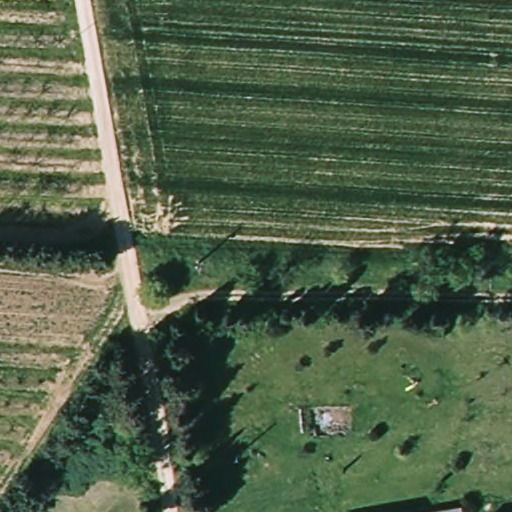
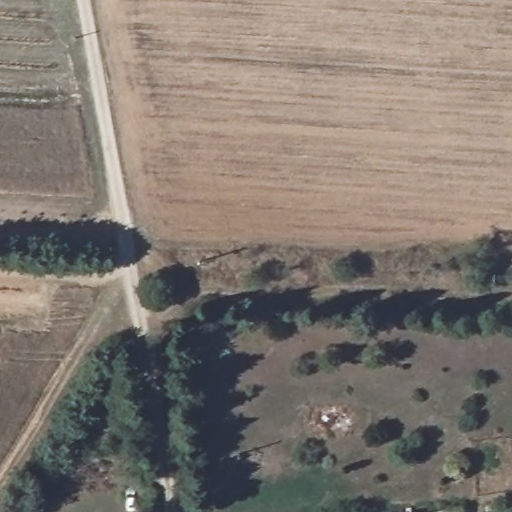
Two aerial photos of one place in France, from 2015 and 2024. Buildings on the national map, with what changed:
unchanged [(467,501),(470,512),(412,512),(457,503),(467,501)]

